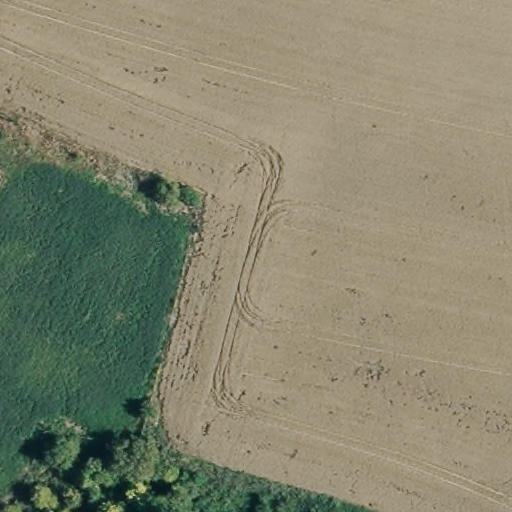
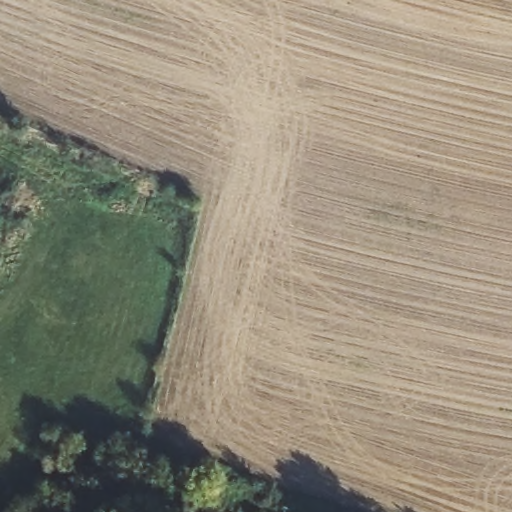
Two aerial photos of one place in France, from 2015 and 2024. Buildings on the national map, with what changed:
[]

